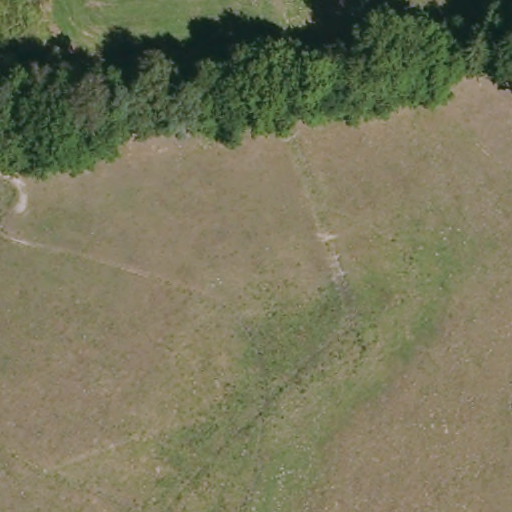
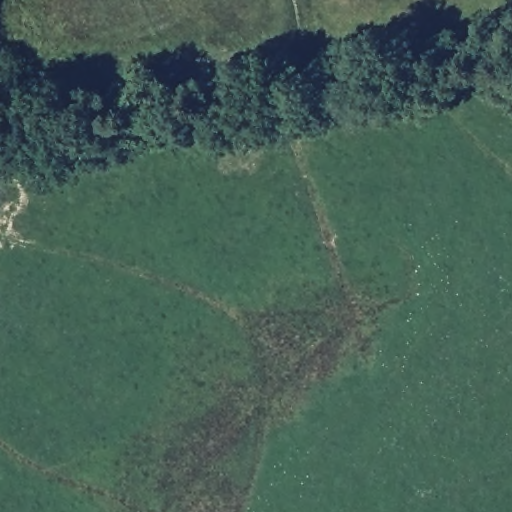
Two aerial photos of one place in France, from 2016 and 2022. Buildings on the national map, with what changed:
[]

